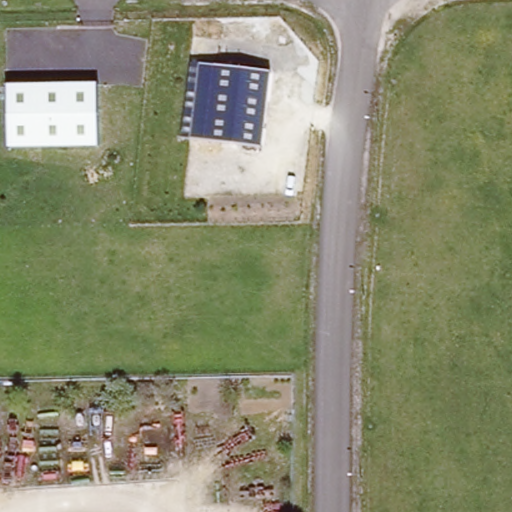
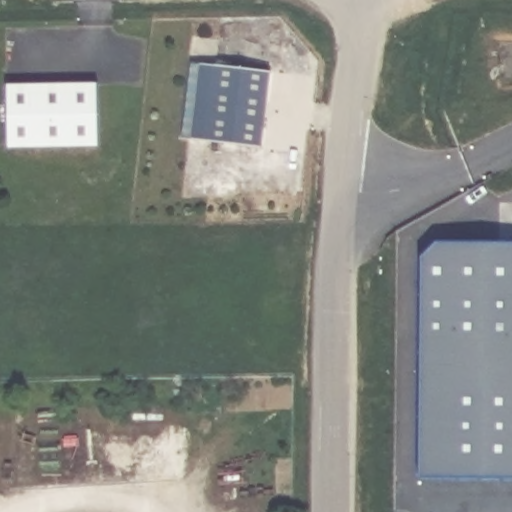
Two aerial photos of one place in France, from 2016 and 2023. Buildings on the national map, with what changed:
unchanged [(267,72),(260,147),(189,140),(197,66),(267,72)]
unchanged [(7,86),(97,85),(99,144),(8,148),(7,86)]
new [(436,244),(512,245),(512,480),(417,478),(420,260),(436,244)]

